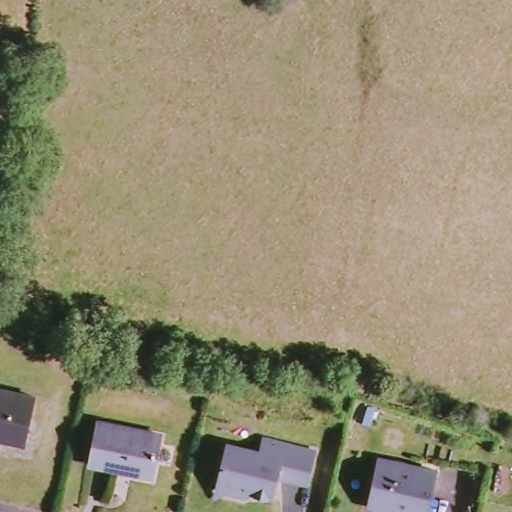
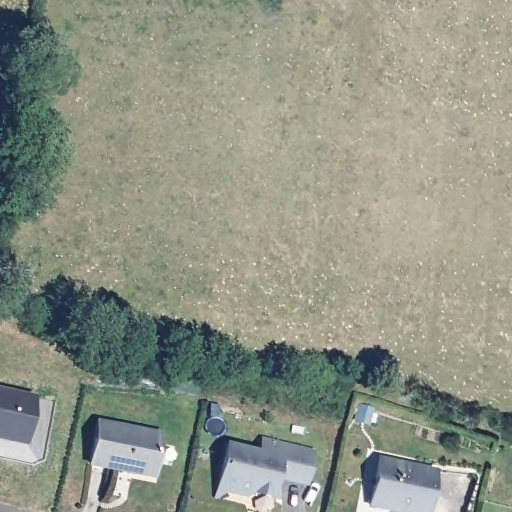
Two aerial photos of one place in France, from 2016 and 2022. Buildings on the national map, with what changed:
unchanged [(36,394),(27,442),(0,436),(0,387),(36,394)]
unchanged [(160,436),(151,479),(90,466),(99,424),(160,436)]
unchanged [(264,443),(313,453),(306,484),(279,479),(274,498),(250,494),(248,498),(233,496),(216,493),(228,446),(262,452),(264,443)]
unchanged [(425,512),(418,512),(400,508),(398,512),(378,512),(367,509),(380,459),(434,473),(425,512)]

